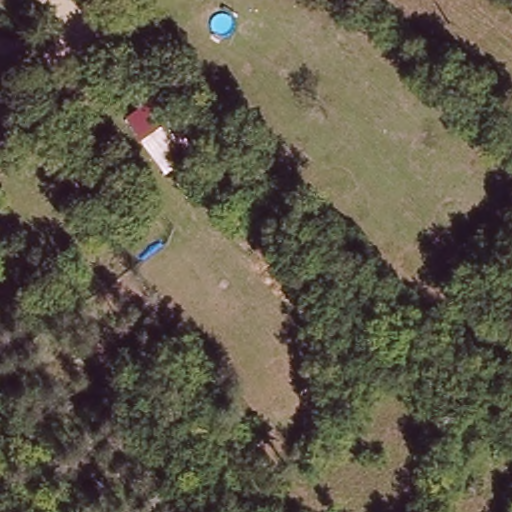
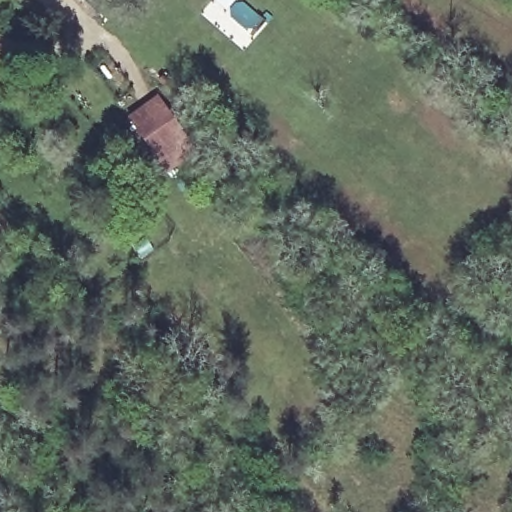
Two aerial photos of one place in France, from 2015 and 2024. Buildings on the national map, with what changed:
new [(165,174),(152,155),(127,121),(156,100),(181,133),(195,152),(165,174)]

